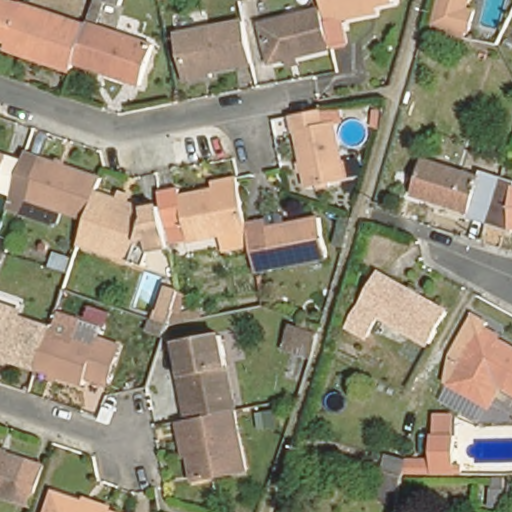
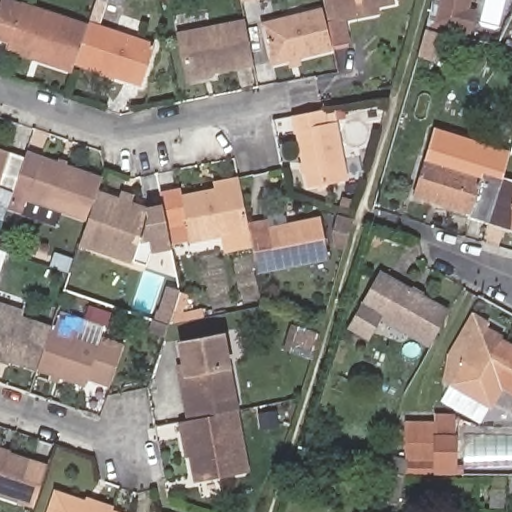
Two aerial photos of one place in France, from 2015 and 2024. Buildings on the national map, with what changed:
unchanged [(0,34),(0,0),(18,0),(23,1),(84,23),(76,45),(71,59),(69,66),(36,55),(7,46),(10,37),(0,34)]
unchanged [(369,1),(371,7),(342,12),(347,37),(333,39),(328,15),(325,0),(377,0),(369,1)]
unchanged [(468,6),(475,9),(466,43),(428,33),(436,0),(470,0),(468,6)]
unchanged [(321,5),(329,40),(273,53),(264,18),(321,5)]
unchanged [(191,79),(190,74),(181,30),(245,17),(255,61),(214,70),(215,75),(191,79)]
unchanged [(85,19),(150,41),(138,82),(71,59),(76,45),(84,23),(85,19)]
unchanged [(352,186),(316,193),(305,140),(300,141),(297,123),(329,117),(332,134),(342,131),(352,186)]
new [(484,178),(482,185),(425,167),(436,127),(510,150),(501,183),(484,178)]
unchanged [(109,180),(104,195),(95,222),(69,213),(20,196),(33,161),(34,155),(109,180)]
unchanged [(489,227),(472,221),(473,219),(414,201),(425,167),(482,185),(484,178),(504,184),(489,227)]
unchanged [(0,172),(0,169),(1,169),(0,172)]
unchanged [(512,187),(512,229),(511,228),(509,233),(489,227),(504,184),(512,187)]
unchanged [(95,222),(104,195),(154,212),(169,209),(174,230),(174,232),(174,234),(175,238),(174,238),(164,240),(149,241),(140,264),(87,247),(95,222)]
unchanged [(258,238),(199,250),(195,235),(178,239),(173,218),(170,202),(188,198),(190,207),(249,195),(258,238)]
unchanged [(74,222),(69,236),(20,219),(21,215),(24,205),(74,222)]
unchanged [(338,264),(283,275),(279,255),(264,258),(259,233),(274,230),(275,235),(329,225),(338,264)]
unchanged [(376,279),(394,288),(396,284),(448,311),(429,348),(378,320),(369,338),(351,328),(376,279)]
unchanged [(146,329),(161,284),(185,295),(174,323),(169,322),(163,337),(146,329)]
unchanged [(18,317),(48,327),(47,330),(34,368),(0,357),(0,302),(21,308),(18,317)]
unchanged [(290,318),(298,320),(301,310),(322,318),(312,354),(289,346),(282,344),(290,318)]
unchanged [(484,325),(478,336),(498,345),(499,342),(512,349),(512,394),(502,389),(491,411),(450,388),(444,385),(444,383),(449,357),(469,318),(484,325)]
unchanged [(47,330),(97,348),(99,342),(119,349),(105,389),(85,382),(84,385),(34,368),(47,330)]
unchanged [(239,417),(194,426),(191,412),(194,411),(183,348),(225,340),(241,417),(239,417)]
unchanged [(458,474),(433,475),(433,435),(437,434),(438,414),(457,413),(459,433),(458,474)]
unchanged [(194,426),(239,417),(252,476),(202,487),(193,446),(189,447),(184,428),(194,426)]
unchanged [(34,466),(20,509),(1,503),(3,496),(0,496),(0,455),(20,461),(34,466)]
unchanged [(384,465),(404,470),(401,486),(395,512),(378,512),(374,511),(381,480),(384,465)]
unchanged [(492,495),(493,483),(506,485),(504,496),(503,512),(488,512),(490,495),(492,495)]
unchanged [(115,512),(49,512),(56,493),(115,512)]

